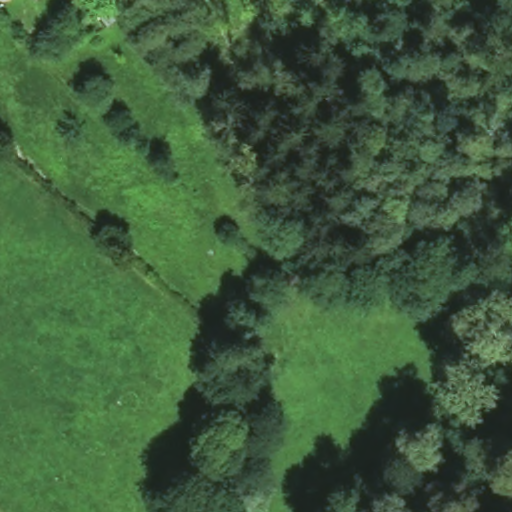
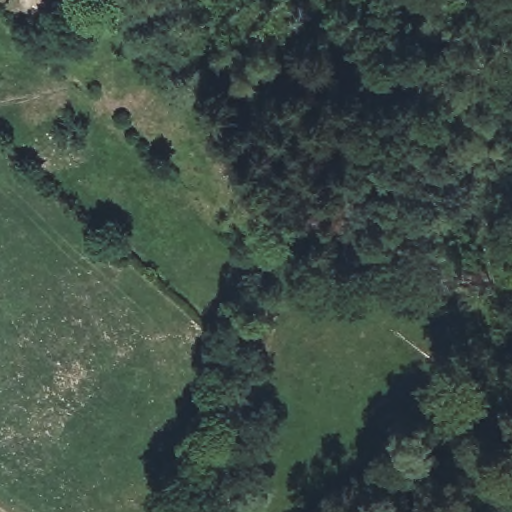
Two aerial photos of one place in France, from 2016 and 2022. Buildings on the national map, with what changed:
unchanged [(112,0),(116,0),(124,12),(106,26),(95,12),(112,0)]

